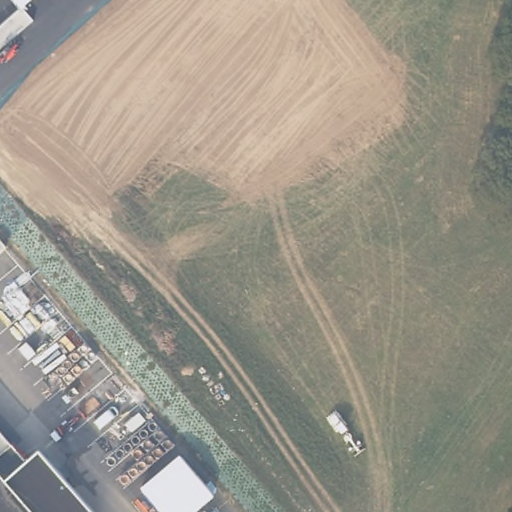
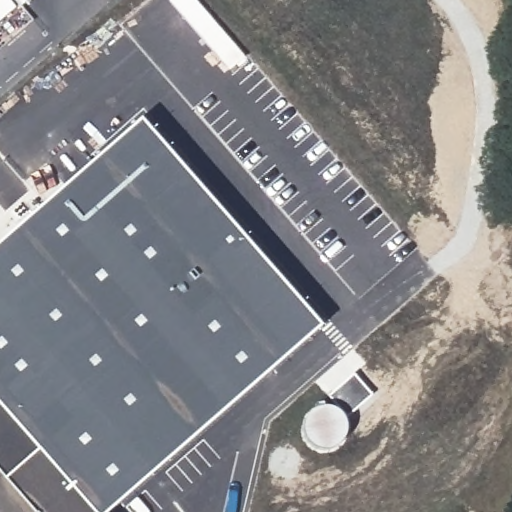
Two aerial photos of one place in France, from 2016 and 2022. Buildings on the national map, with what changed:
unchanged [(22,9),(14,0),(32,0),(22,9)]
new [(92,512),(39,451),(25,464),(0,432),(0,243),(141,121),(320,327),(108,512),(92,512)]
unchanged [(0,432),(25,464),(39,451),(92,512),(30,512),(0,477),(0,432)]
unchanged [(0,512),(0,477),(30,512),(0,512)]

